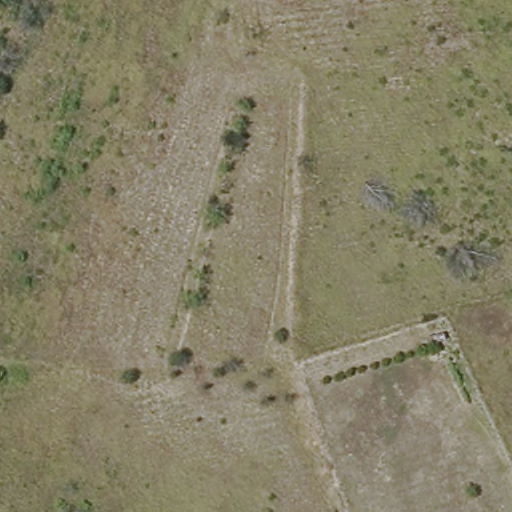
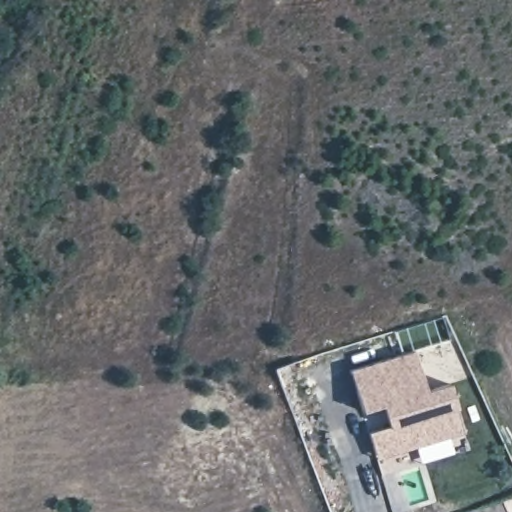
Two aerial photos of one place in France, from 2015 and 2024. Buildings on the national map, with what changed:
new [(424,387),(448,380),(457,406),(464,430),(374,457),(368,430),(388,422),(383,405),(360,412),(348,366),(412,347),(424,387)]

